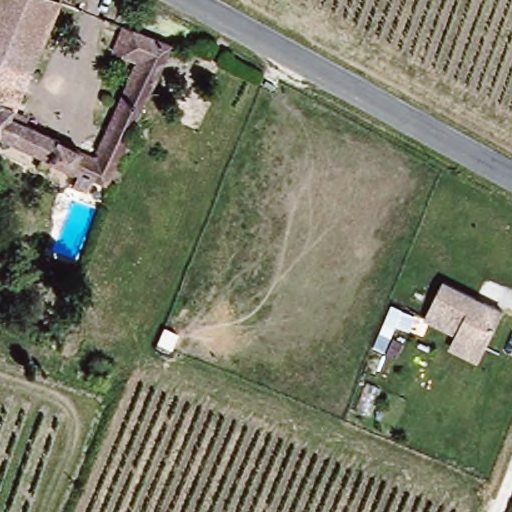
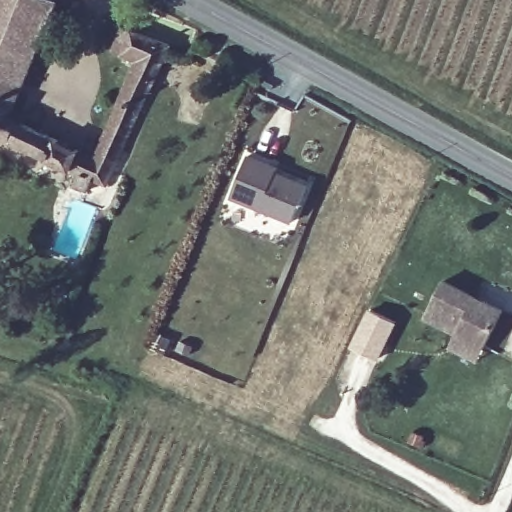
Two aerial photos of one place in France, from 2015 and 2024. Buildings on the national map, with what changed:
unchanged [(53,15),(16,111),(0,105),(0,0),(14,0),(53,15)]
unchanged [(53,15),(14,0),(59,0),(53,15)]
unchanged [(16,111),(35,119),(32,125),(88,148),(130,53),(110,45),(122,19),(174,38),(108,184),(100,181),(93,195),(69,184),(74,172),(49,161),(42,175),(32,169),(40,153),(0,138),(0,105),(16,111)]
new [(291,225),(229,201),(244,159),(275,171),(273,176),(305,189),(291,225)]
unchanged [(506,315),(487,351),(428,321),(447,285),(506,315)]
new [(379,360),(351,346),(369,308),(397,322),(379,360)]

